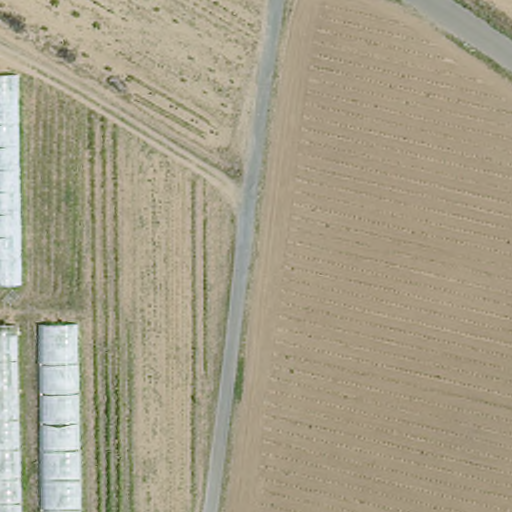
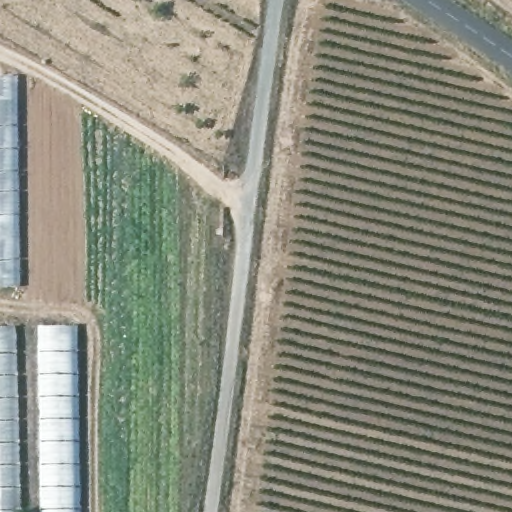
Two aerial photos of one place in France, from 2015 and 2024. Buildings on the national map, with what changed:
unchanged [(0,77),(14,76),(17,287),(0,286),(0,77)]
unchanged [(0,326),(11,326),(16,512),(0,512),(0,326)]
unchanged [(44,328),(74,326),(77,512),(47,512),(44,328)]

